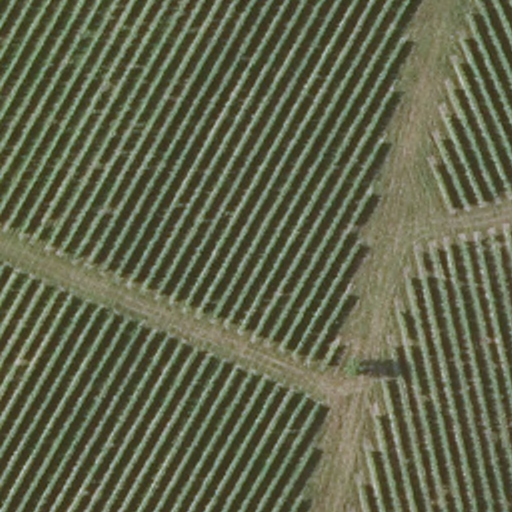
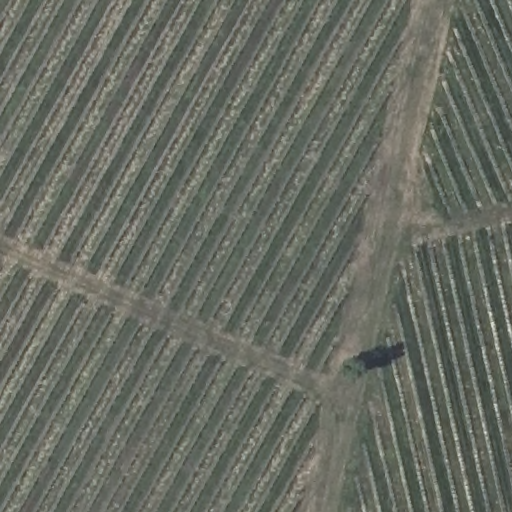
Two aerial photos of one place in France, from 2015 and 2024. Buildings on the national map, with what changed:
[]

